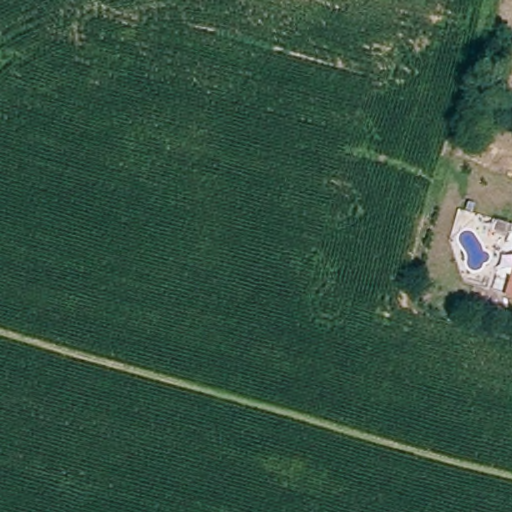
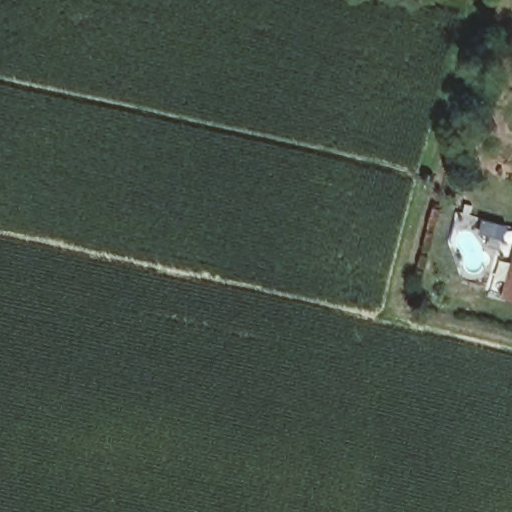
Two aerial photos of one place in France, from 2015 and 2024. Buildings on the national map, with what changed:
unchanged [(512,302),(510,301),(512,292),(512,302)]

